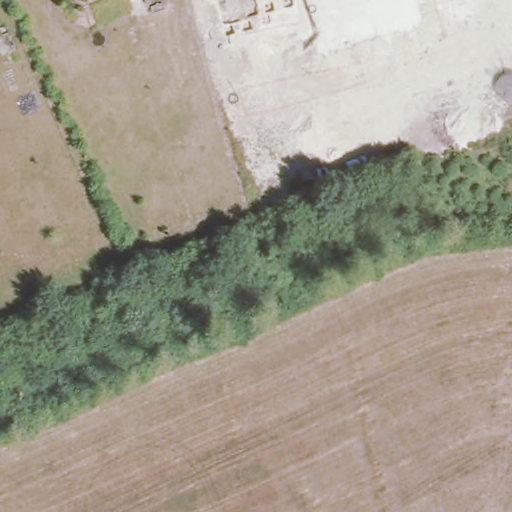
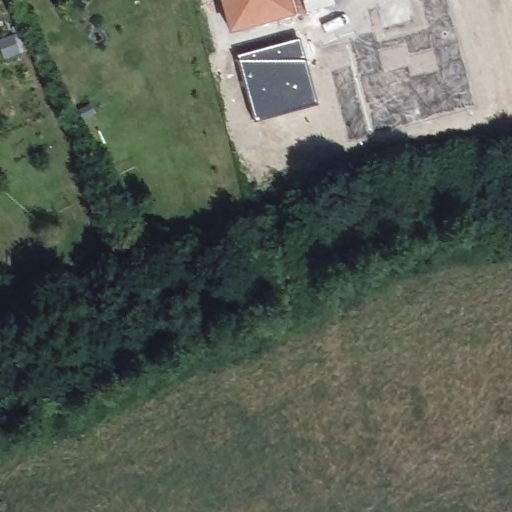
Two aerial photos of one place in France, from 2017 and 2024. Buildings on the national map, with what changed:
new [(248,25),(248,37),(224,43),(213,0),(287,0),(291,15),(248,25)]
new [(316,105),(253,121),(235,55),(298,39),(316,105)]

